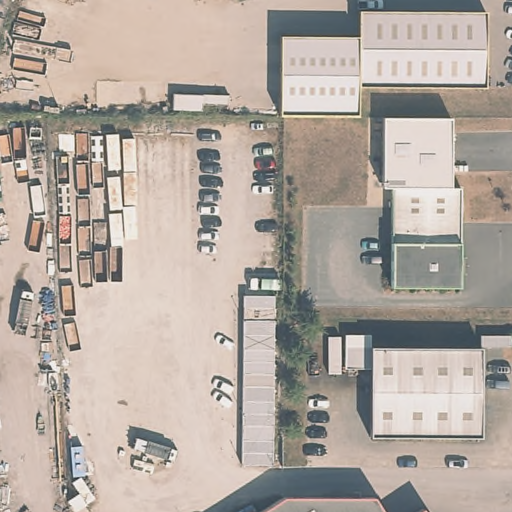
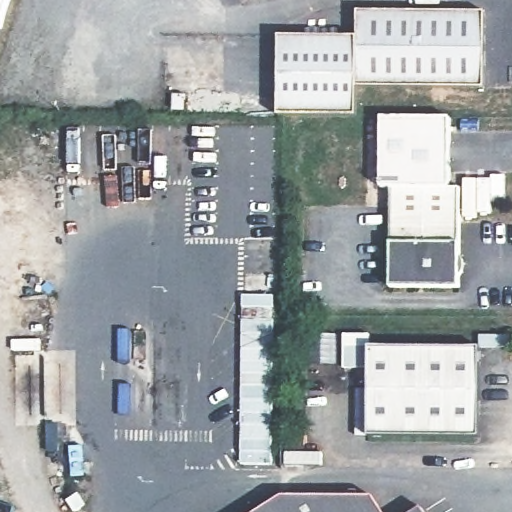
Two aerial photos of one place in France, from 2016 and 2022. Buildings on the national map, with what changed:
unchanged [(359,85),(359,114),(297,114),(283,114),(283,34),(360,34),(359,9),(486,10),(486,86),(359,85)]
unchanged [(451,118),(451,182),(393,183),(382,183),(382,118),(451,118)]
unchanged [(393,280),(393,183),(451,182),(462,182),(462,249),(466,254),(467,260),(466,265),(461,270),(462,281),(393,280)]
unchanged [(485,431),(373,430),(374,362),(348,361),(349,328),(374,328),(374,341),(485,342),(485,431)]
unchanged [(381,492),(393,512),(258,512),(290,492),(381,492)]
unchanged [(418,512),(429,505),(433,512),(418,512)]

